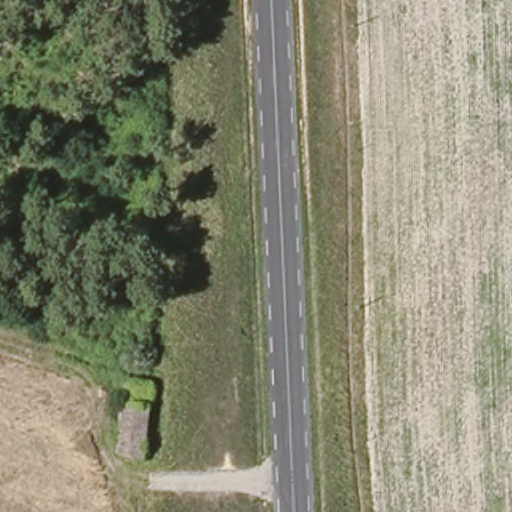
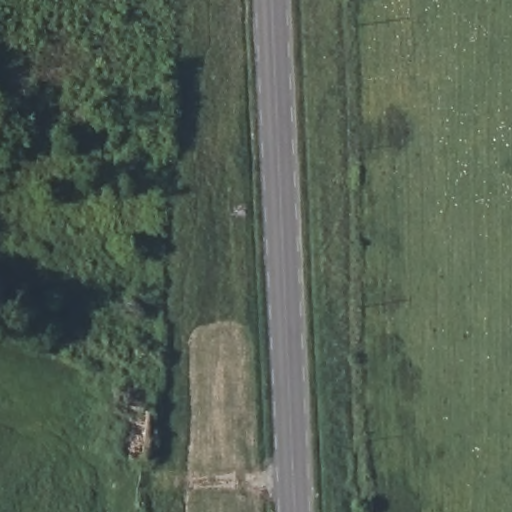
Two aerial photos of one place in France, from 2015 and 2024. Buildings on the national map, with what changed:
unchanged [(129,405),(155,406),(154,464),(125,463),(129,405)]

